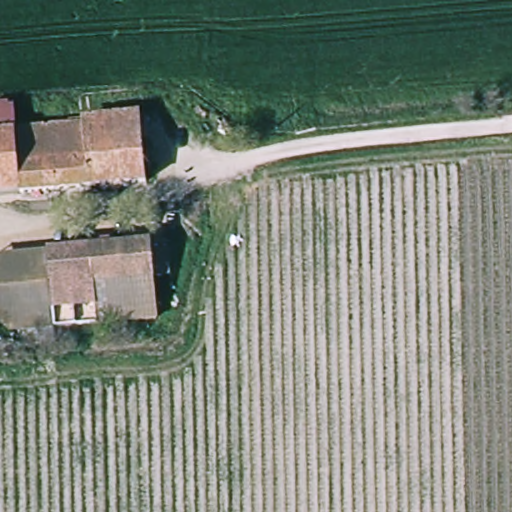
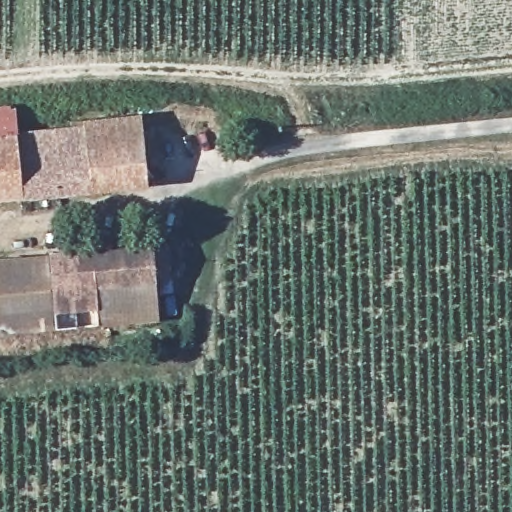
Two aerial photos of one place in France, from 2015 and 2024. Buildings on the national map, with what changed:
unchanged [(12,104),(12,105),(15,129),(69,123),(69,117),(138,110),(145,180),(0,193),(0,105),(12,104)]
unchanged [(162,270),(148,272),(151,313),(0,326),(0,252),(160,237),(162,270)]

